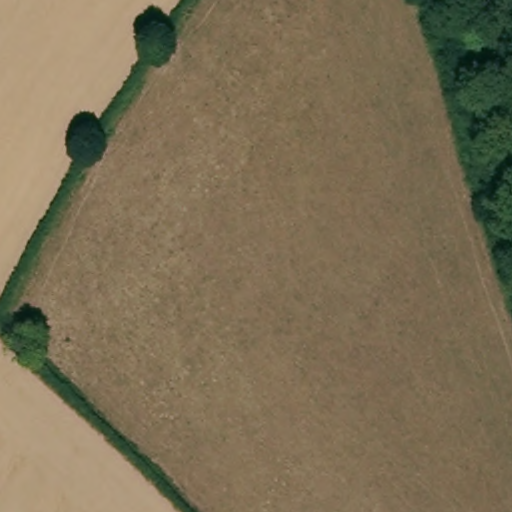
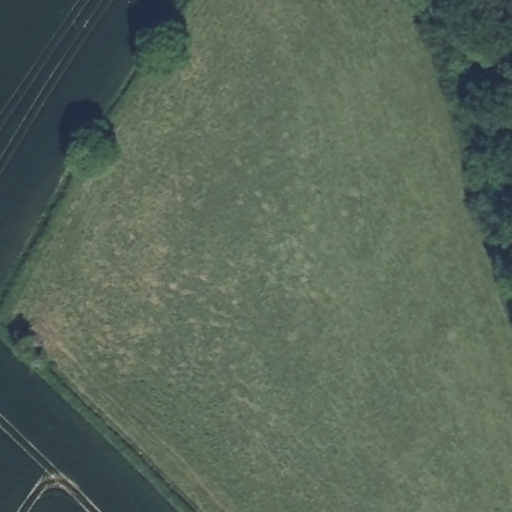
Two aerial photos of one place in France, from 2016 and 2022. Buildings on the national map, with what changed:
[]

